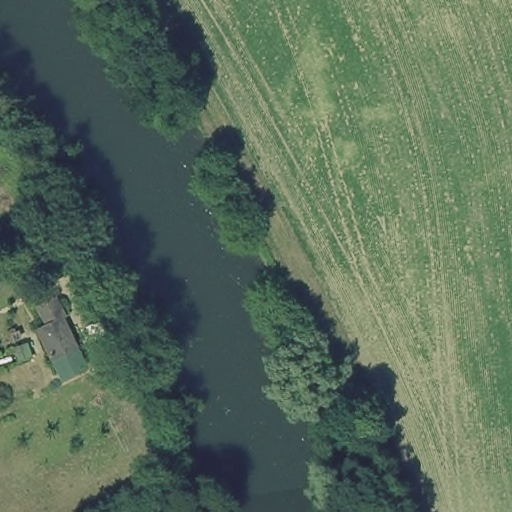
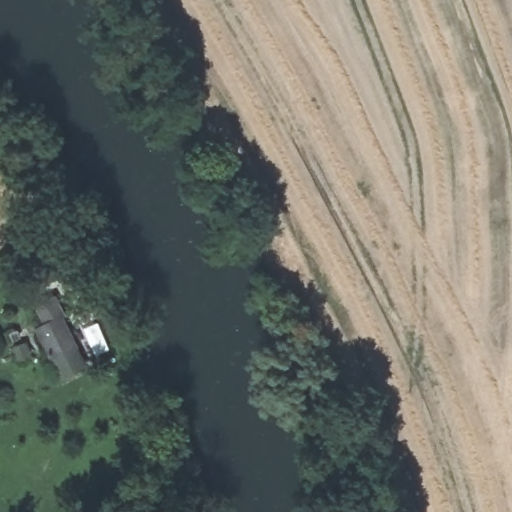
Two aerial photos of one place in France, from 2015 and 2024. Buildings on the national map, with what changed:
unchanged [(81,354),(88,370),(63,381),(48,354),(35,332),(45,326),(40,317),(35,308),(55,297),(83,352),(78,355),(81,354)]

